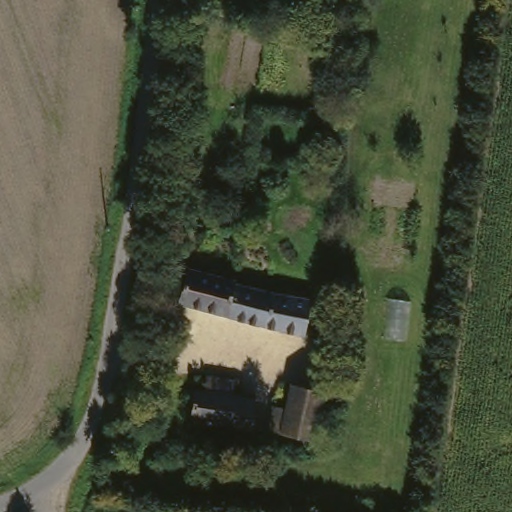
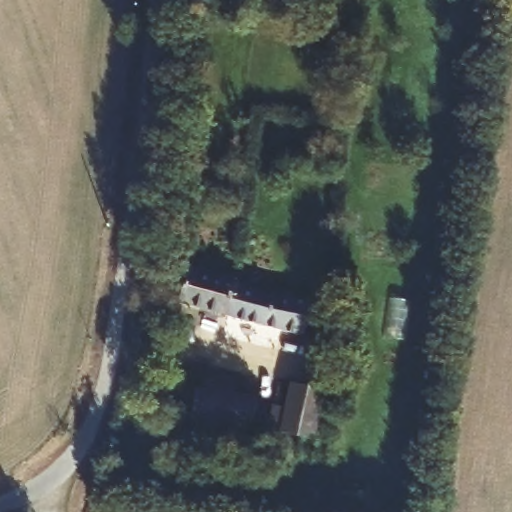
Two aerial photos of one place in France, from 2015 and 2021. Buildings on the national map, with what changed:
unchanged [(237,282),(237,285),(312,304),(306,338),(181,306),(190,270),(237,282)]
unchanged [(182,389),(207,393),(211,378),(238,383),(235,398),(260,403),(254,434),(177,420),(182,389)]
unchanged [(277,408),(288,411),(294,383),(326,390),(316,442),(283,435),(272,433),(277,408)]

